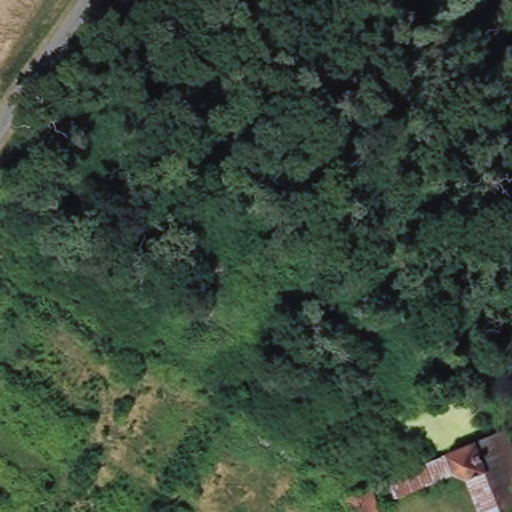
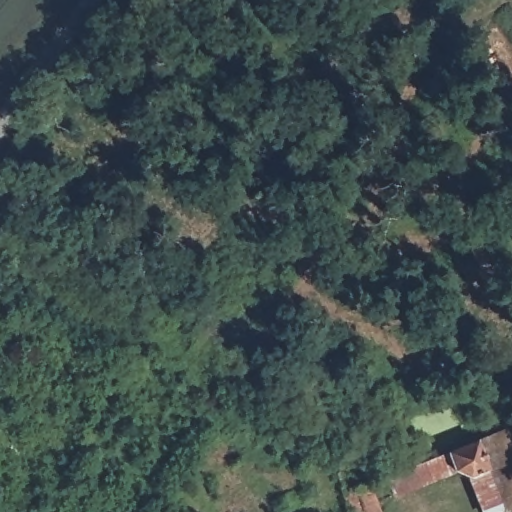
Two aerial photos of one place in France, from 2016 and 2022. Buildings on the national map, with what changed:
unchanged [(502,429),(512,453),(512,507),(501,512),(498,512),(496,507),(473,439),(502,429)]
unchanged [(496,507),(482,512),(480,512),(465,473),(450,467),(390,491),(383,475),(472,436),(473,439),(496,507)]
unchanged [(350,512),(341,489),(354,484),(359,486),(363,497),(367,495),(374,512),(350,512)]

